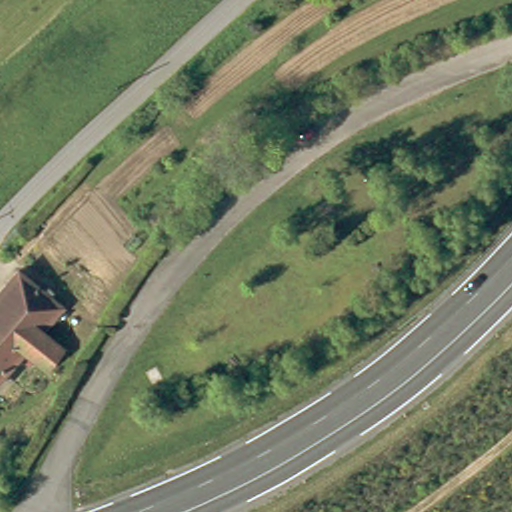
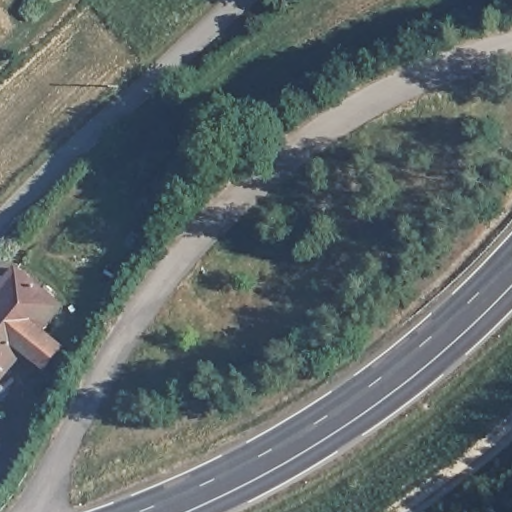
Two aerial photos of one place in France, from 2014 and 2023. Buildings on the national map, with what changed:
unchanged [(18,363),(0,380),(0,298),(21,276),(64,316),(47,334),(64,352),(46,373),(38,366),(30,373),(18,363)]
unchanged [(13,458),(1,470),(0,469),(0,448),(2,447),(13,458)]

